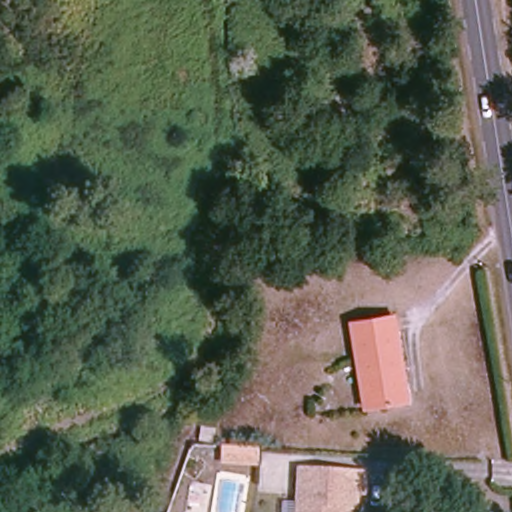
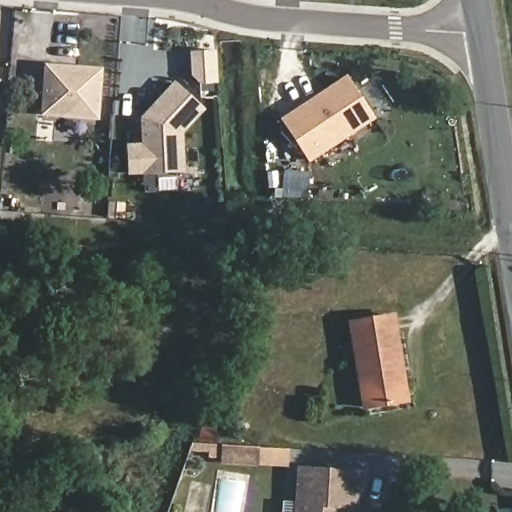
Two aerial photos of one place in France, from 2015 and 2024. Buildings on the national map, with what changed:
new [(220,50),(221,82),(205,83),(196,76),(195,52),(220,50)]
new [(66,65),(71,66),(105,69),(101,118),(45,114),(48,64),(66,65)]
new [(352,79),(378,119),(313,160),(288,119),(352,79)]
new [(146,118),(155,108),(177,84),(206,109),(177,140),(185,148),(186,171),(132,173),(131,146),(147,145),(146,118)]
unchanged [(402,401),(366,406),(353,323),(397,317),(405,366),(410,401),(402,401)]
new [(192,454),(194,427),(216,428),(215,445),(290,450),(288,469),(221,464),(221,456),(192,454)]
unchanged [(365,466),(362,495),(356,496),(353,510),(350,510),(349,512),(297,512),(301,462),(365,466)]

